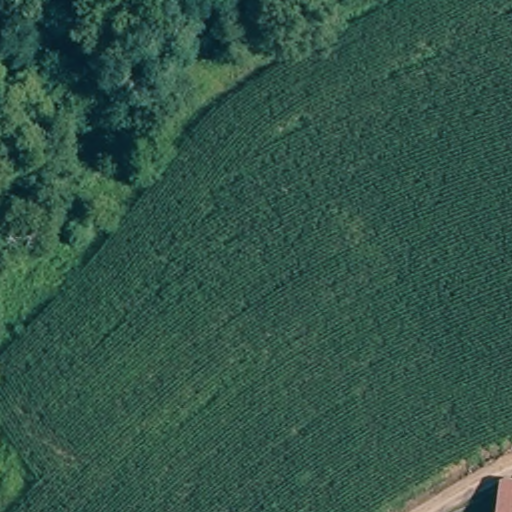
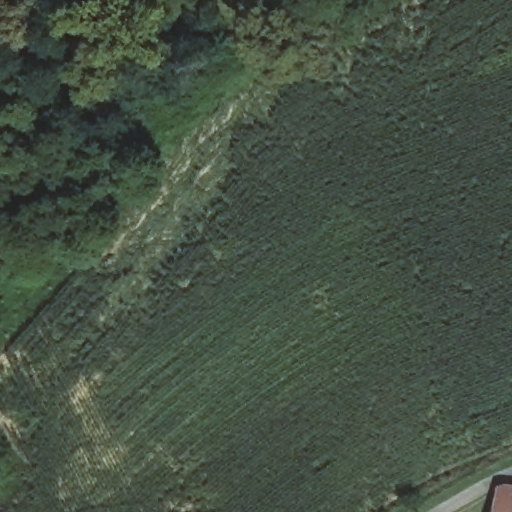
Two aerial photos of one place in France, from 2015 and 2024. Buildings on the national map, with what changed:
unchanged [(496,480),(512,482),(512,512),(493,512),(496,480)]

